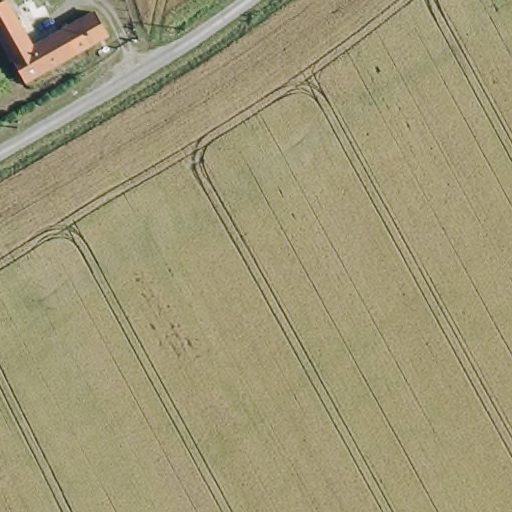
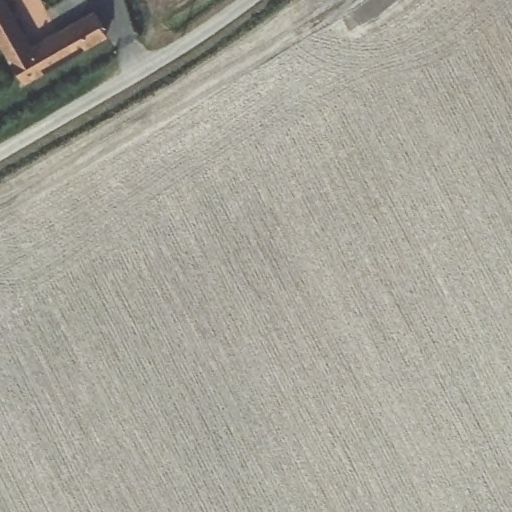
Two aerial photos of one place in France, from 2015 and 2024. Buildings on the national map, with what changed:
unchanged [(0,42),(0,2),(3,0),(7,0),(32,44),(95,11),(107,37),(21,80),(0,42)]

